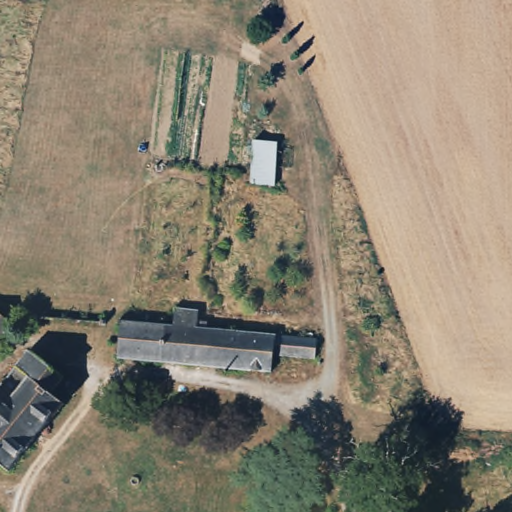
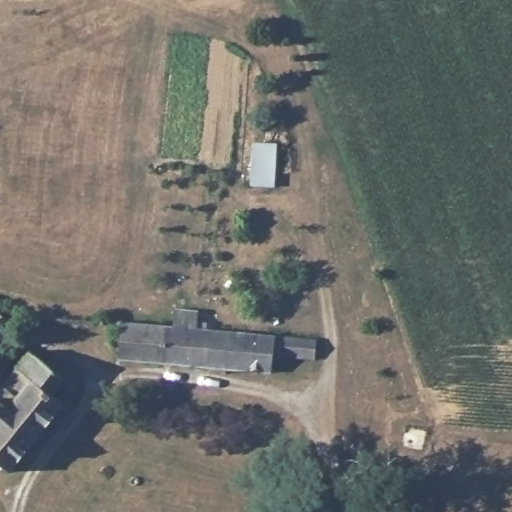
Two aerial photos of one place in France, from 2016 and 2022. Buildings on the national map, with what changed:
unchanged [(280,149),(277,190),(251,188),(255,146),(280,149)]
unchanged [(318,359),(277,354),(274,374),(121,358),(125,320),(146,323),(178,326),(179,309),(202,311),(200,329),(209,329),(210,318),(230,320),(229,332),(242,333),(250,334),(300,339),(319,342),(318,359)]
unchanged [(0,347),(0,315),(16,328),(0,347)]
unchanged [(64,381),(54,394),(67,406),(9,476),(0,469),(0,396),(34,356),(64,381)]
unchanged [(426,426),(421,446),(408,443),(400,442),(406,421),(426,426)]

